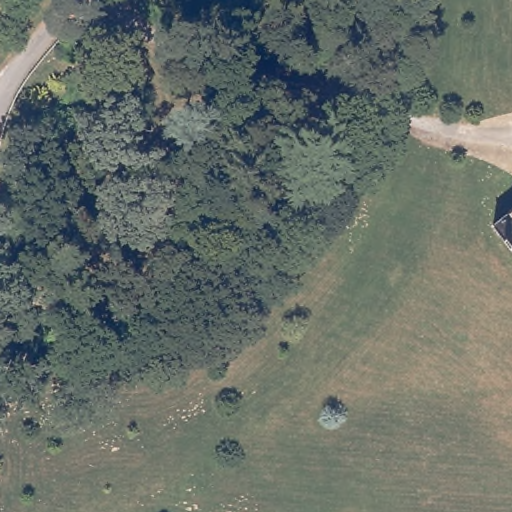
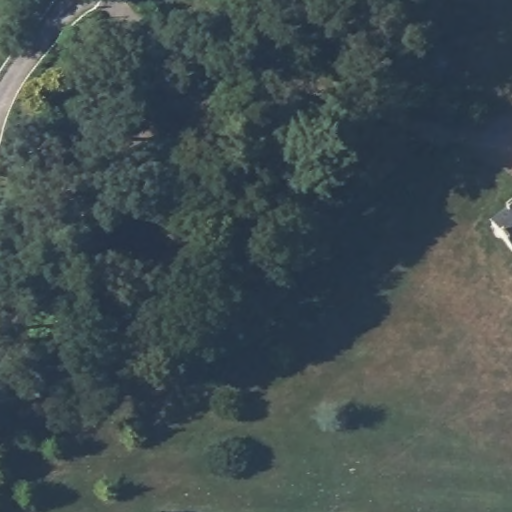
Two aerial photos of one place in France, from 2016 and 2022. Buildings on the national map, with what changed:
unchanged [(512,209),(512,254),(491,226),(512,209)]

